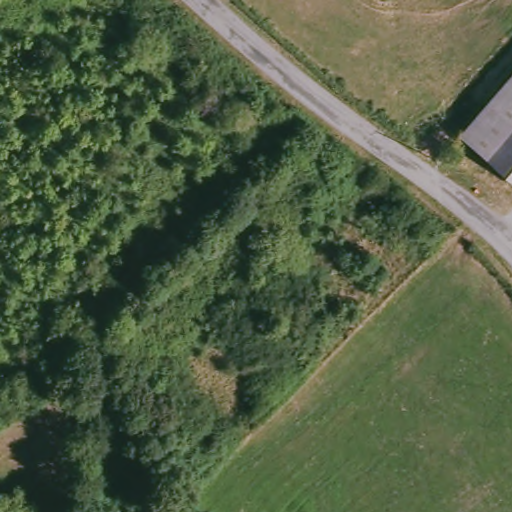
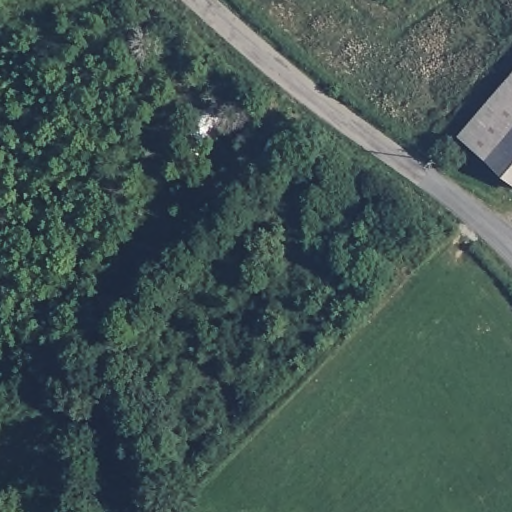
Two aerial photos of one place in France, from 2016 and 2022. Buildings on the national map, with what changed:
unchanged [(463,133),(512,77),(512,175),(463,133)]

